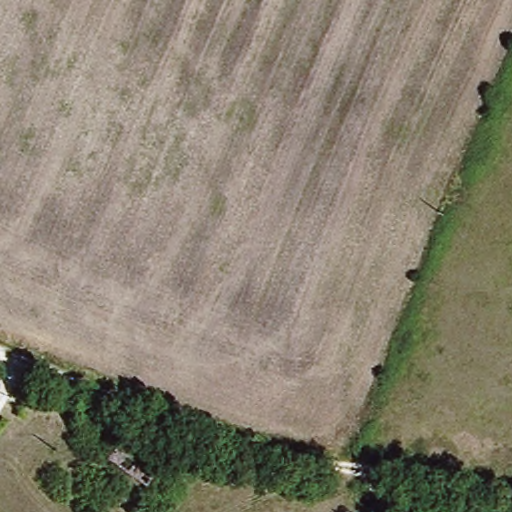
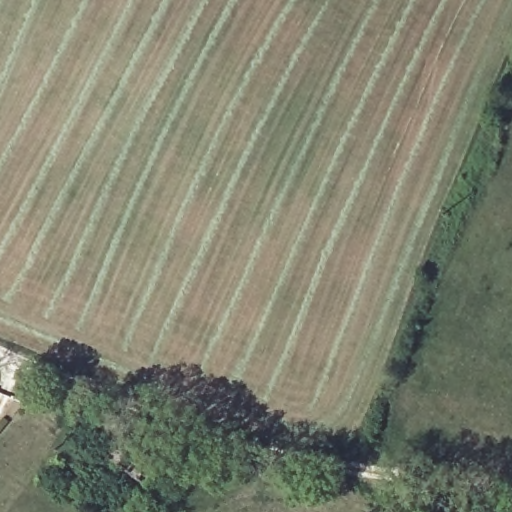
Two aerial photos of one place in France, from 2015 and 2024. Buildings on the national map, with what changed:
unchanged [(125,435),(122,445),(97,436),(100,427),(125,435)]
unchanged [(116,477),(129,444),(152,452),(155,445),(181,453),(160,493),(116,477)]

